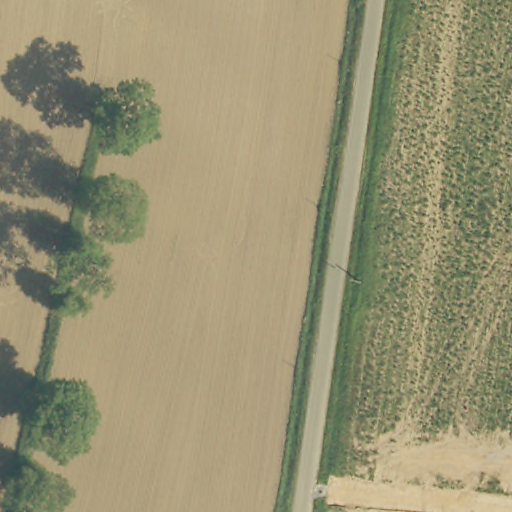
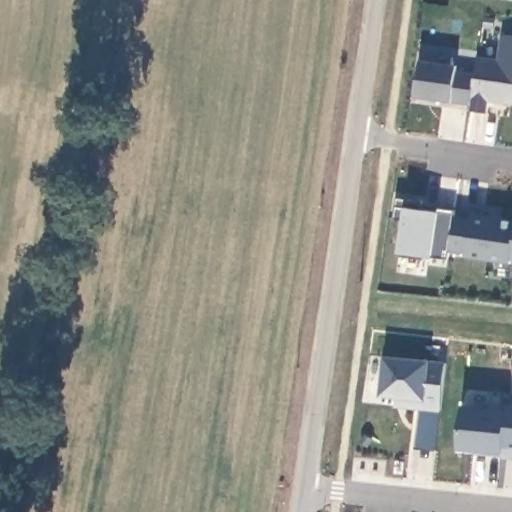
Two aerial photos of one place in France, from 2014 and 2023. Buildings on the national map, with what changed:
new [(489,114),(470,111),(471,105),(448,101),(413,96),(419,59),(455,64),(453,69),(475,73),(479,56),(497,59),(501,35),(512,37),(512,105),(491,103),(489,114)]
new [(509,264),(463,257),(463,253),(447,251),(446,259),(432,258),(396,252),(405,208),(438,212),(453,210),(453,215),(469,219),(471,212),(512,219),(512,260),(509,259),(509,264)]
new [(430,361),(443,362),(439,411),(394,407),(397,398),(380,397),(384,356),(430,361)]
new [(507,409),(502,454),(460,450),(464,404),(507,409)]

